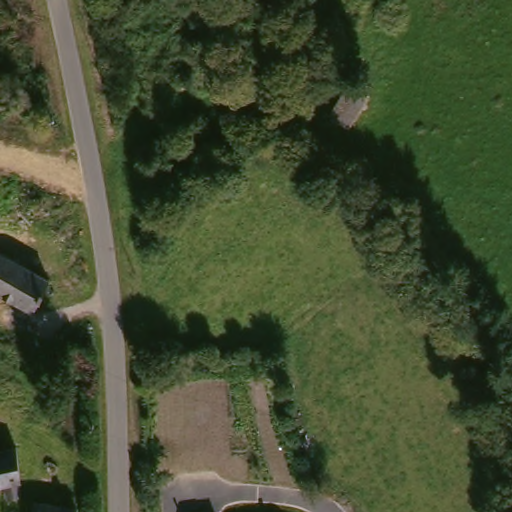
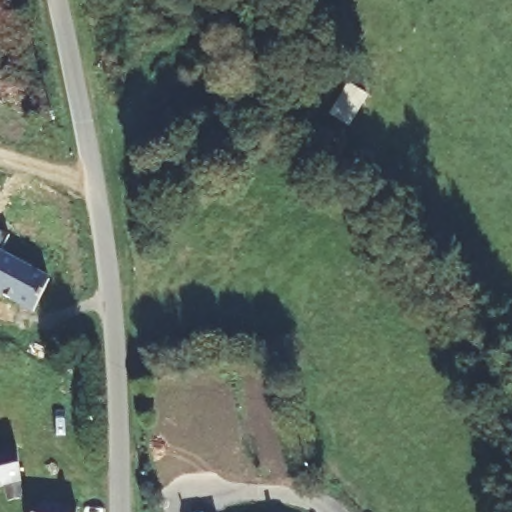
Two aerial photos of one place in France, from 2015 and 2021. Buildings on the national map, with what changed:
unchanged [(2,177),(0,184),(0,177),(2,177)]
unchanged [(0,287),(0,240),(55,269),(38,305),(0,287)]
unchanged [(28,439),(31,461),(29,490),(17,492),(13,479),(0,482),(0,445),(28,439)]
unchanged [(82,504),(82,512),(39,512),(41,498),(64,502),(82,504)]

